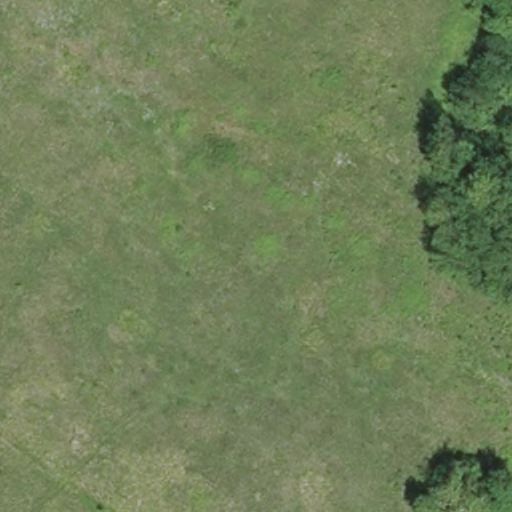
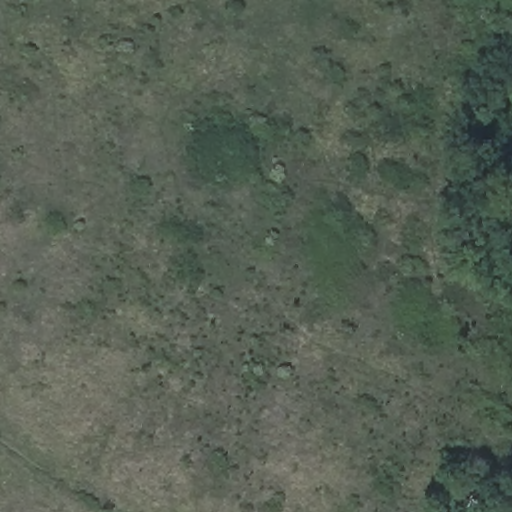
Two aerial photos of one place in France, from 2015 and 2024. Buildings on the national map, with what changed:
[]

